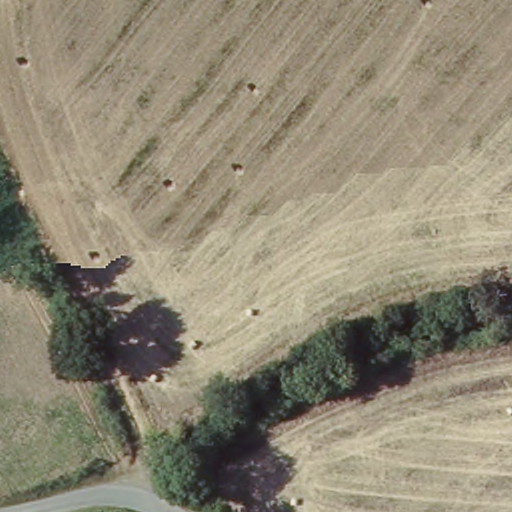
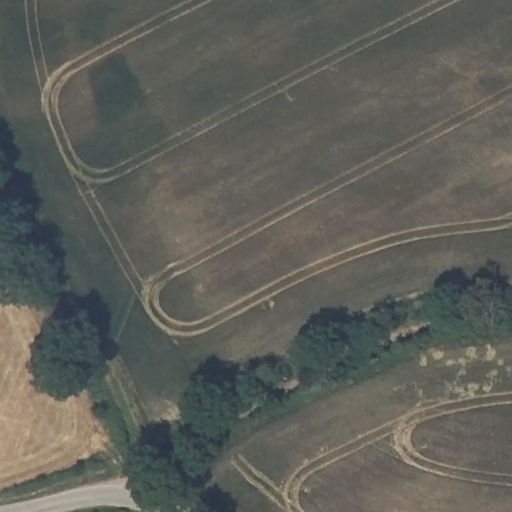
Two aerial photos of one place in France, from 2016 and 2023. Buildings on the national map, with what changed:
[]

